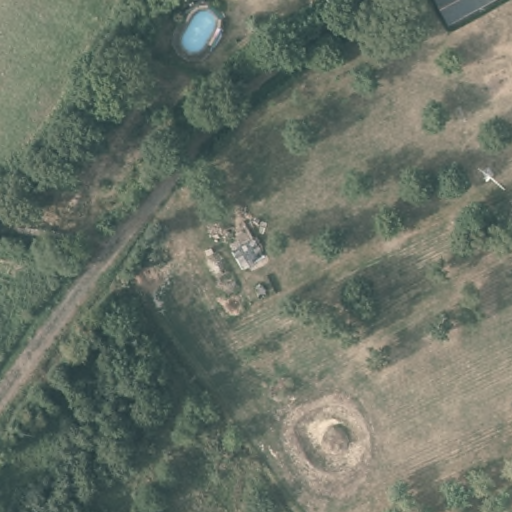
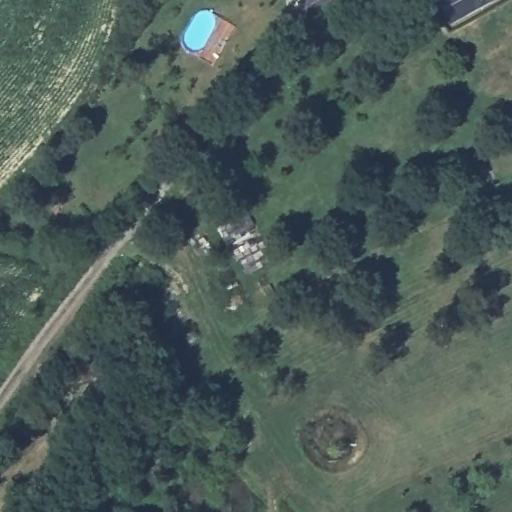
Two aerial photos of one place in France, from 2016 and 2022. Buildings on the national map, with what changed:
unchanged [(334,2),(333,0),(340,0),(334,2)]
unchanged [(452,14),(444,0),(480,0),(452,14)]

